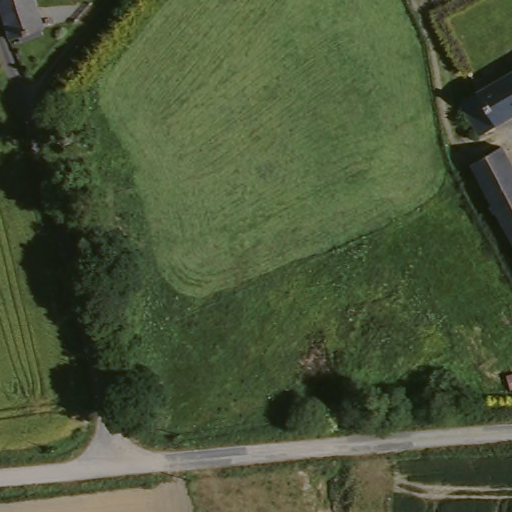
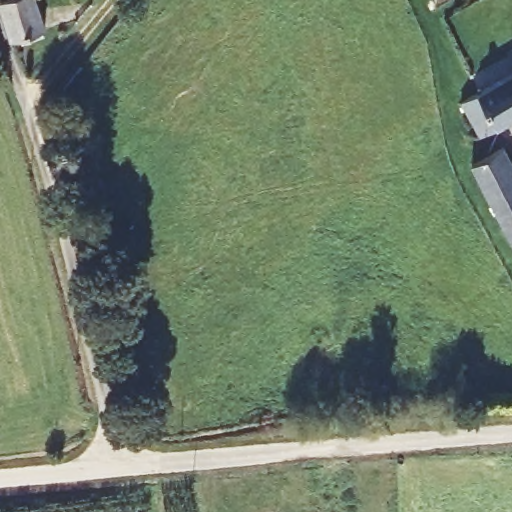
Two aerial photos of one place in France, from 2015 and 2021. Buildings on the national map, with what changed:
unchanged [(9,0),(39,0),(47,28),(11,39),(0,2),(9,0)]
unchanged [(490,127),(471,96),(512,71),(512,115),(496,125),(490,127)]
unchanged [(506,144),(512,153),(512,228),(475,161),(506,144)]

